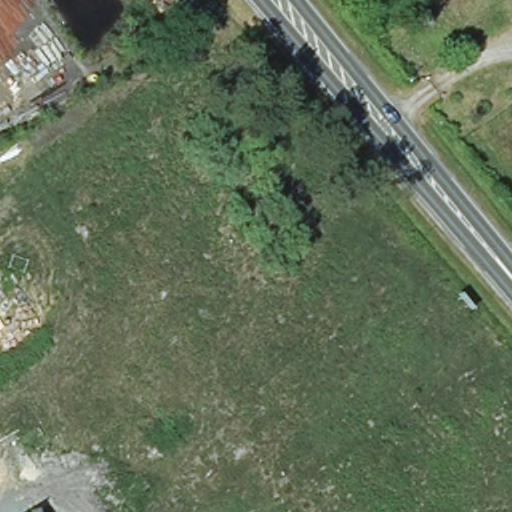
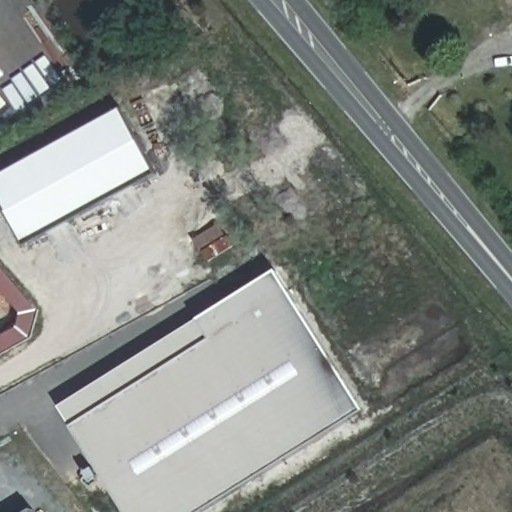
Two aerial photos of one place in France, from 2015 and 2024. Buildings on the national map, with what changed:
new [(121,105),(159,170),(29,244),(0,194),(0,175),(121,105)]
new [(209,335),(196,316),(274,266),(364,405),(197,512),(127,512),(70,424),(209,335)]
unchanged [(33,512),(25,512),(31,508),(33,512)]

